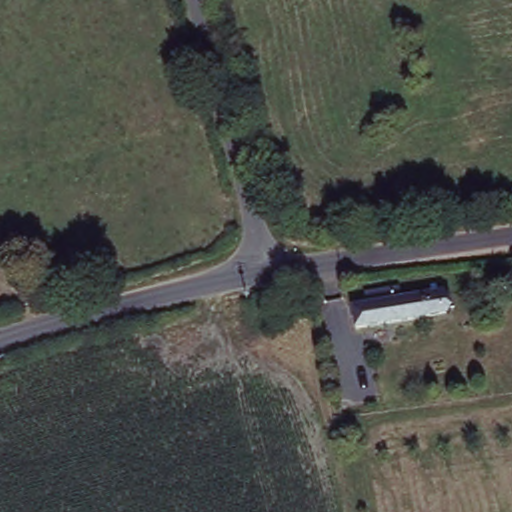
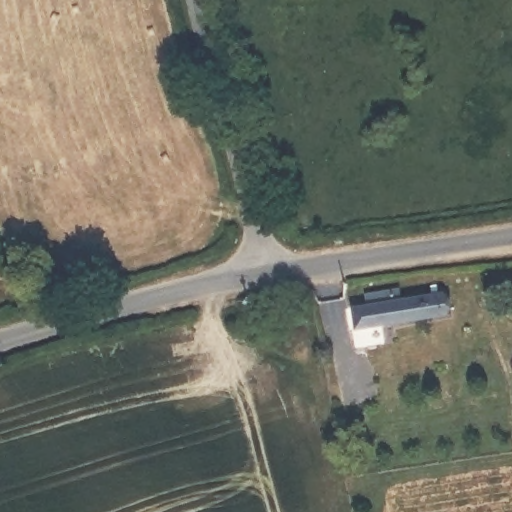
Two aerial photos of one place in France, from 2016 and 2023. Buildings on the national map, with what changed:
unchanged [(356,308),(372,304),(372,291),(405,287),(406,300),(443,294),(447,314),(362,327),(356,308)]

